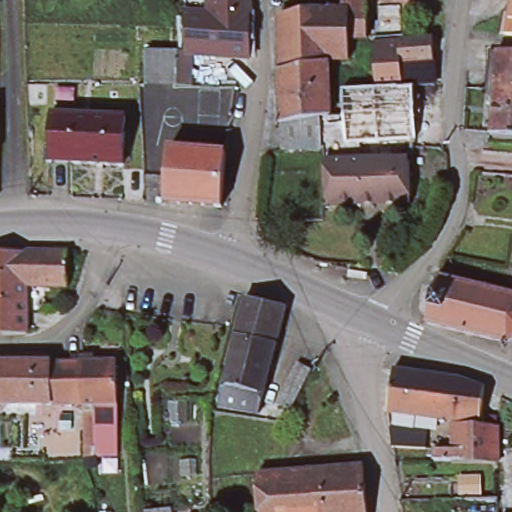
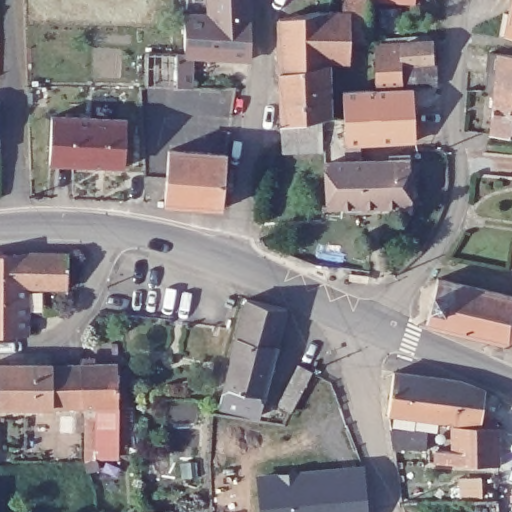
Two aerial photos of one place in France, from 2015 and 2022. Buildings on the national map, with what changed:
unchanged [(145,91),(145,57),(173,57),(177,57),(185,57),(189,20),(188,0),(250,0),(252,23),(226,21),(227,62),(194,58),(193,92),(177,92),(145,91)]
unchanged [(370,0),(370,40),(351,40),(352,12),(342,12),(343,0),(370,0)]
unchanged [(370,0),(416,0),(416,3),(370,0)]
unchanged [(507,34),(508,25),(512,5),(512,36),(507,34)]
unchanged [(402,8),(402,32),(380,33),(380,8),(402,8)]
unchanged [(280,19),(320,11),(342,12),(352,12),(351,40),(350,60),(329,60),(329,71),(282,73),(280,19)]
unchanged [(252,23),(252,64),(227,62),(226,21),(252,23)]
unchanged [(434,41),(435,85),(414,88),(378,90),(377,44),(434,41)]
unchanged [(490,134),(495,90),(487,89),(490,51),(498,52),(512,54),(512,137),(490,134)]
unchanged [(328,206),(327,163),(325,118),(325,148),(282,150),(282,127),(282,73),(329,71),(331,118),(345,118),(344,91),(378,90),(414,88),(416,140),(347,145),(342,145),(343,162),(410,160),(412,204),(328,206)]
unchanged [(127,120),(125,167),(50,164),(52,116),(127,120)]
unchanged [(169,150),(227,155),(223,209),(164,204),(146,202),(145,176),(167,178),(169,150)]
unchanged [(27,286),(0,286),(0,254),(27,254),(27,286)]
unchanged [(70,254),(68,288),(27,286),(27,254),(70,254)]
unchanged [(512,295),(512,341),(507,344),(467,335),(427,325),(439,278),(512,295)]
unchanged [(27,315),(28,335),(0,336),(0,286),(27,286),(27,315)]
unchanged [(286,308),(277,345),(237,335),(247,298),(286,308)]
unchanged [(220,405),(224,387),(237,335),(277,345),(265,397),(260,415),(220,405)]
unchanged [(0,406),(0,365),(52,365),(80,365),(117,365),(118,405),(117,455),(95,455),(95,458),(85,459),(85,430),(54,429),(53,406),(0,406)]
unchanged [(312,372),(290,412),(278,405),(299,365),(312,372)]
unchanged [(434,377),(429,419),(389,414),(394,371),(434,377)]
unchanged [(459,380),(487,391),(482,426),(429,419),(434,377),(459,380)]
unchanged [(497,428),(500,429),(500,465),(454,466),(454,463),(436,463),(435,450),(454,451),(454,426),(497,428)]
unchanged [(428,432),(427,450),(397,449),(392,449),(391,430),(428,432)]
unchanged [(364,469),(368,512),(320,512),(317,472),(364,469)]
unchanged [(258,477),(317,472),(320,512),(260,512),(258,477)]
unchanged [(498,512),(454,512),(454,501),(450,501),(450,493),(459,492),(459,487),(476,487),(476,501),(499,501),(498,512)]
unchanged [(172,510),(172,512),(159,512),(172,510)]

